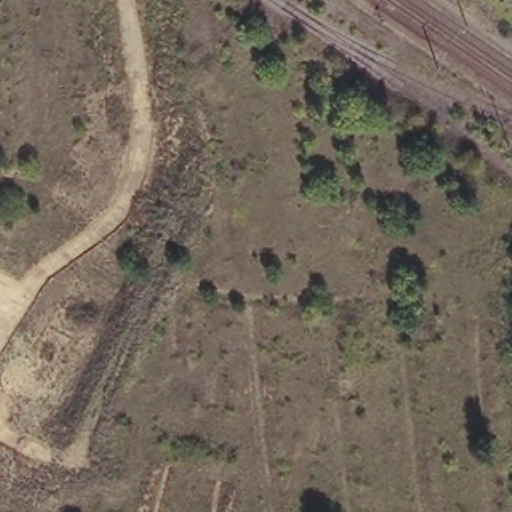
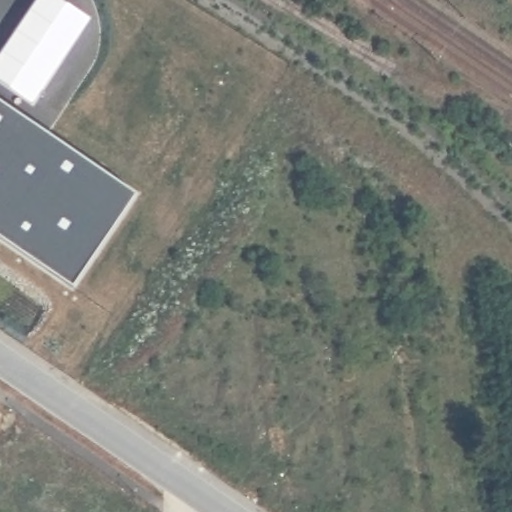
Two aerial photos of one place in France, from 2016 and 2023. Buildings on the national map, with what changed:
new [(61,0),(86,17),(33,103),(0,81),(0,54),(37,0),(61,0)]
new [(74,285),(0,237),(0,99),(135,190),(74,285)]

